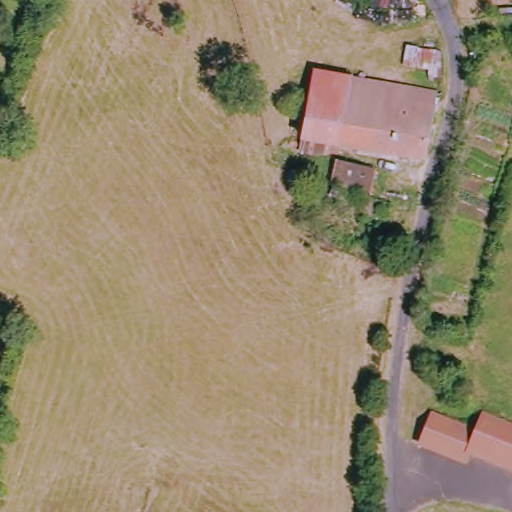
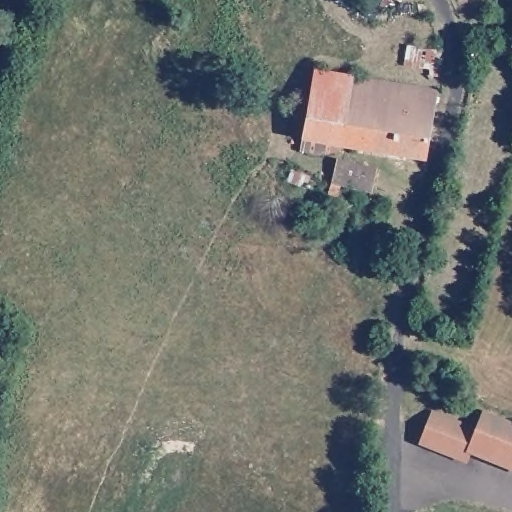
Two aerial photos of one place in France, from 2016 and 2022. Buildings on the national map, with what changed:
unchanged [(307,144),(300,145),(314,75),(356,79),(442,93),(430,166),(329,149),(325,158),(300,156),(307,144)]
unchanged [(338,177),(349,177),(348,164),(387,176),(385,197),(356,189),(356,204),(337,201),(338,177)]
unchanged [(469,466),(422,448),(435,417),(478,435),(486,415),(512,425),(512,471),(471,455),(469,466)]

